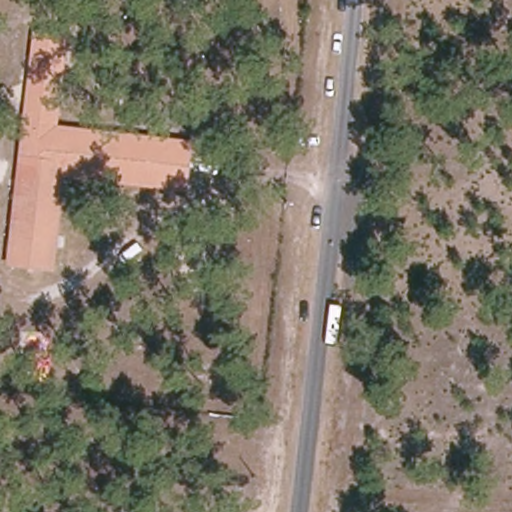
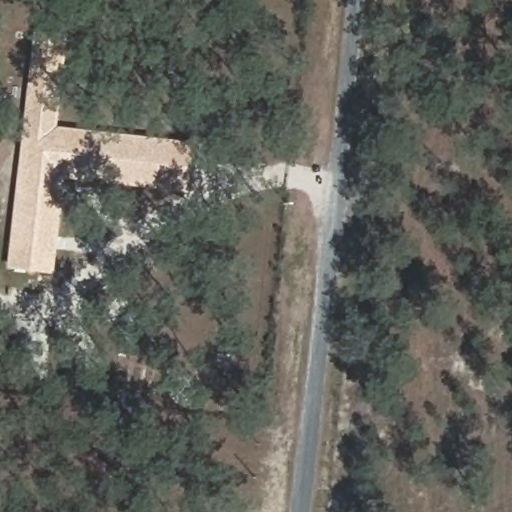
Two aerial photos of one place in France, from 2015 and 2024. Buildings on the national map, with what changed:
unchanged [(8,263),(34,55),(63,59),(54,129),(192,145),(186,187),(63,174),(51,269),(8,263)]

